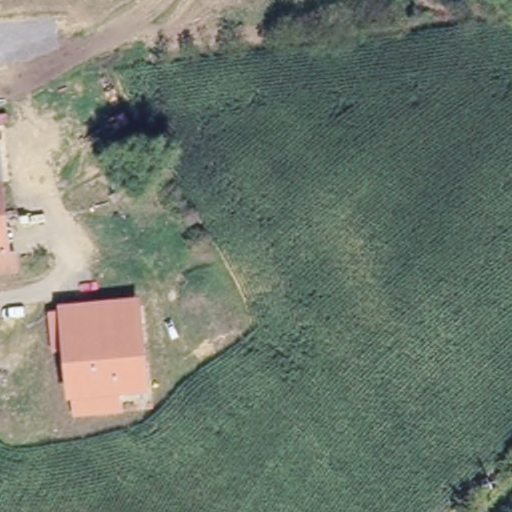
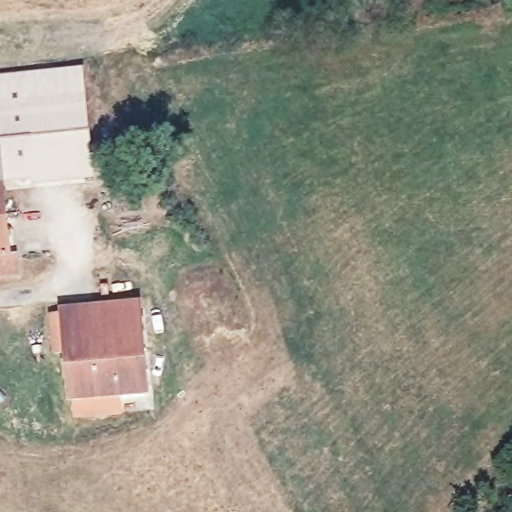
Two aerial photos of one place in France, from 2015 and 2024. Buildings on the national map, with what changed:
new [(96,181),(31,187),(30,182),(0,185),(0,77),(84,69),(96,181)]
unchanged [(17,264),(19,278),(0,279),(0,203),(7,262),(17,264)]
unchanged [(82,417),(81,401),(79,401),(74,350),(61,352),(61,342),(59,316),(71,317),(71,313),(91,312),(143,307),(150,395),(122,397),(125,413),(82,417)]

